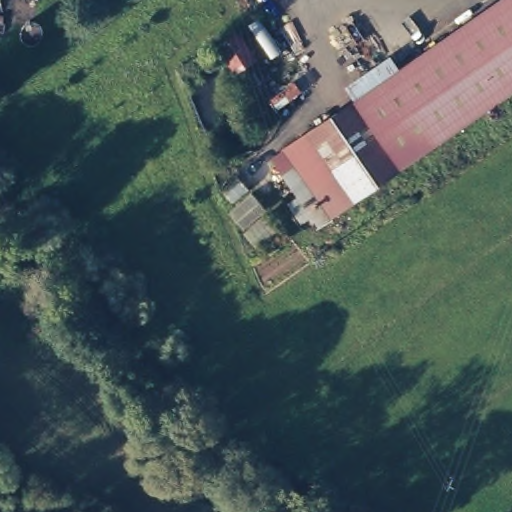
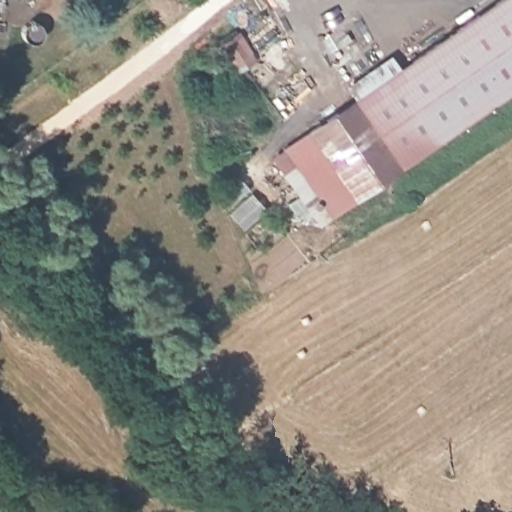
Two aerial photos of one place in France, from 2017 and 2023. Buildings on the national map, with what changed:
unchanged [(509,0),(512,0),(512,95),(353,202),(306,136),(509,0)]
unchanged [(296,112),(279,124),(268,108),(285,97),(296,112)]
unchanged [(353,202),(328,221),(279,153),(306,136),(353,202)]

